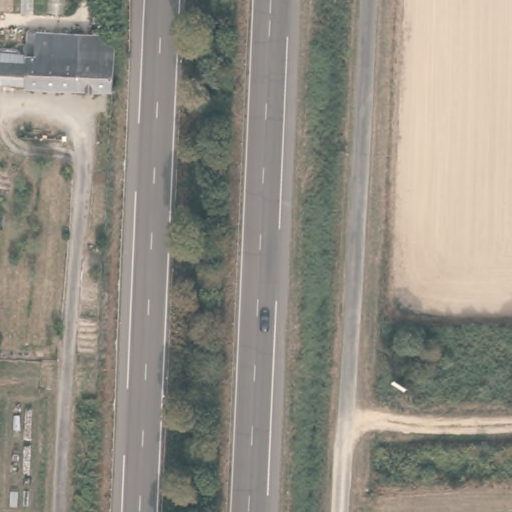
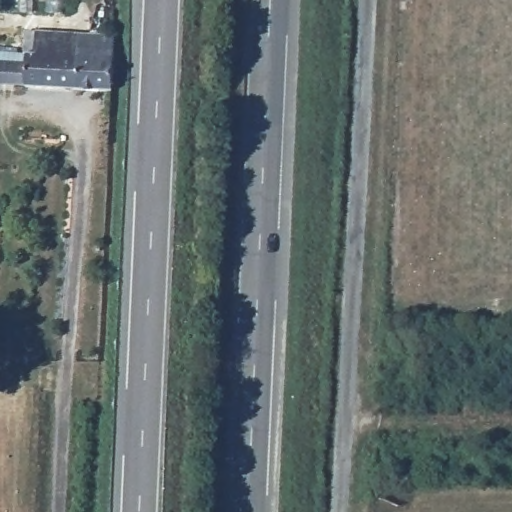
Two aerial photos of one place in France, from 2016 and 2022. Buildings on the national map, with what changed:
unchanged [(7,48),(25,49),(27,30),(112,35),(109,88),(25,83),(24,79),(5,78),(0,77),(0,48),(7,48)]

